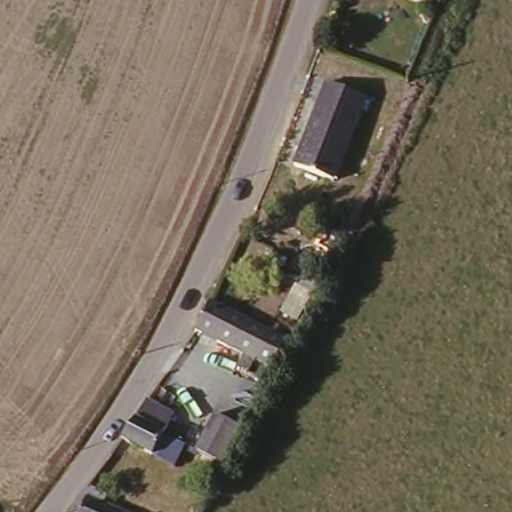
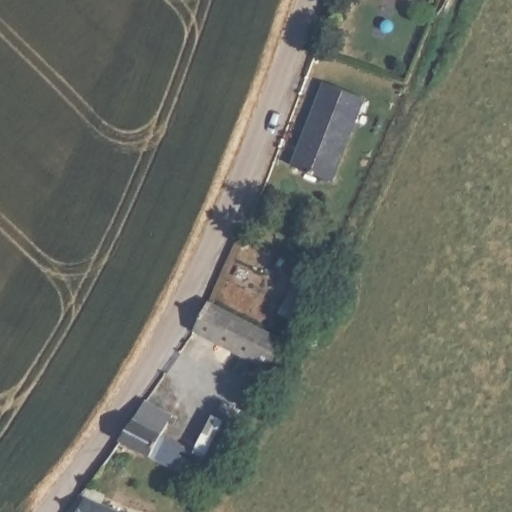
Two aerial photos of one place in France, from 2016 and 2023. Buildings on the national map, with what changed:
unchanged [(363,90),(335,172),(297,157),(325,77),(363,90)]
unchanged [(271,369),(254,360),(248,367),(236,360),(243,349),(239,347),(215,335),(203,329),(217,304),(253,323),(285,344),(271,369)]
unchanged [(120,438),(133,416),(142,401),(174,419),(164,435),(150,457),(120,438)]
unchanged [(192,453),(217,415),(239,430),(214,468),(192,453)]
unchanged [(131,512),(61,512),(82,485),(131,512)]

